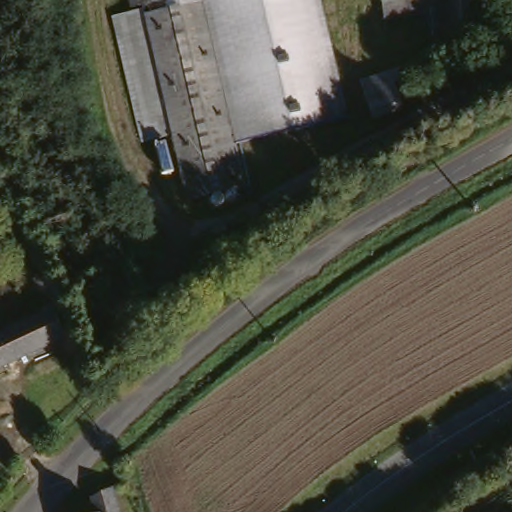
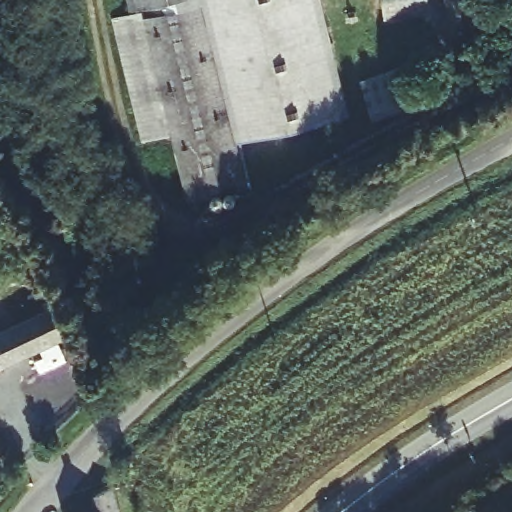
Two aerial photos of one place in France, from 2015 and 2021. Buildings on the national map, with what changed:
unchanged [(131,0),(140,0),(132,3),(131,0)]
unchanged [(179,7),(202,1),(237,141),(247,183),(192,199),(174,132),(144,14),(142,0),(177,0),(179,7)]
unchanged [(444,14),(330,28),(343,85),(389,71),(404,108),(336,133),(332,121),(237,141),(202,1),(179,7),(177,0),(442,0),(444,14)]
unchanged [(444,14),(442,0),(484,0),(489,39),(447,44),(444,14)]
unchanged [(174,132),(158,136),(129,18),(144,14),(174,132)]
unchanged [(424,59),(434,56),(437,65),(394,80),(391,70),(424,59)]
unchanged [(0,364),(0,333),(52,308),(63,335),(0,364)]
unchanged [(113,491),(119,512),(91,512),(88,497),(113,491)]

